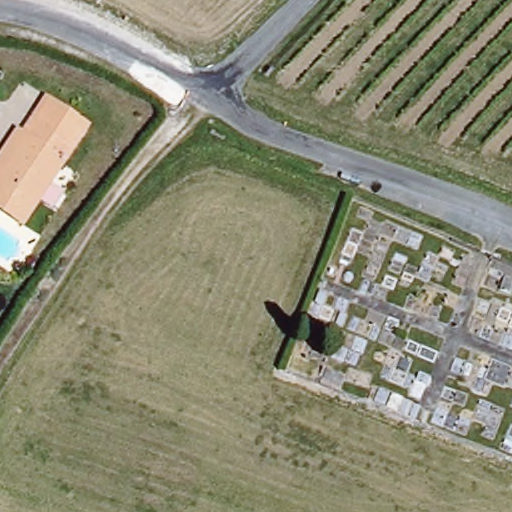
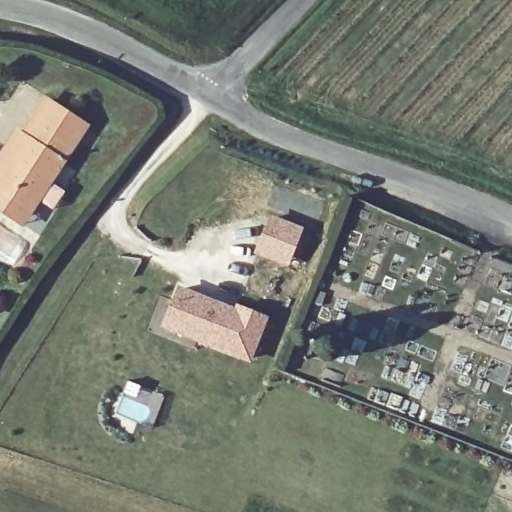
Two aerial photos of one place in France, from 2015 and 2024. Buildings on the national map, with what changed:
unchanged [(37,205),(27,223),(0,207),(0,179),(21,143),(42,105),(81,126),(46,189),(61,196),(52,214),(37,205)]
unchanged [(21,143),(0,179),(0,159),(12,138),(21,143)]
unchanged [(21,233),(0,220),(0,207),(27,223),(21,233)]
new [(270,215),(303,229),(289,267),(256,255),(270,215)]
new [(173,292),(219,310),(218,314),(232,319),(232,310),(259,320),(245,361),(193,342),(194,337),(162,325),(173,292)]

